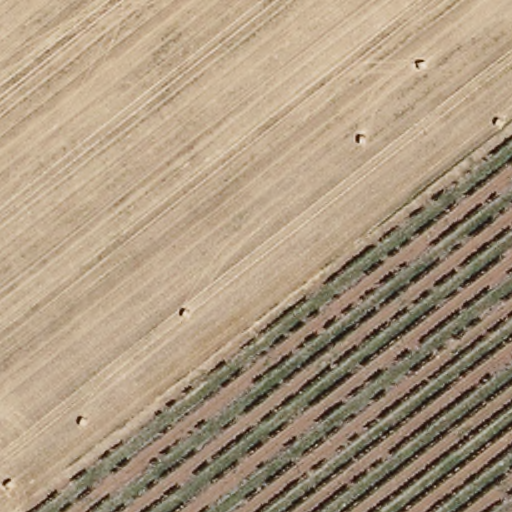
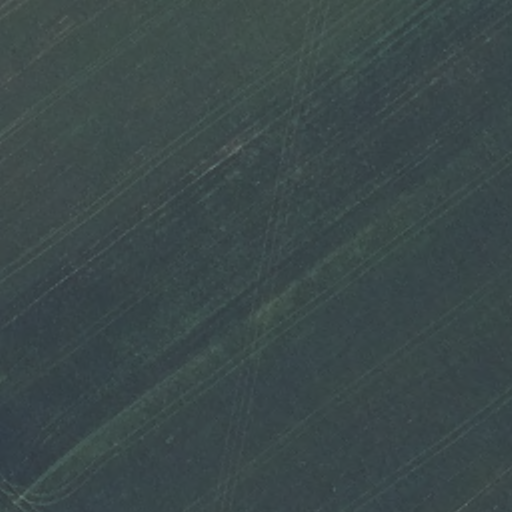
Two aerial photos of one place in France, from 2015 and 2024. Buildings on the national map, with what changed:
[]

